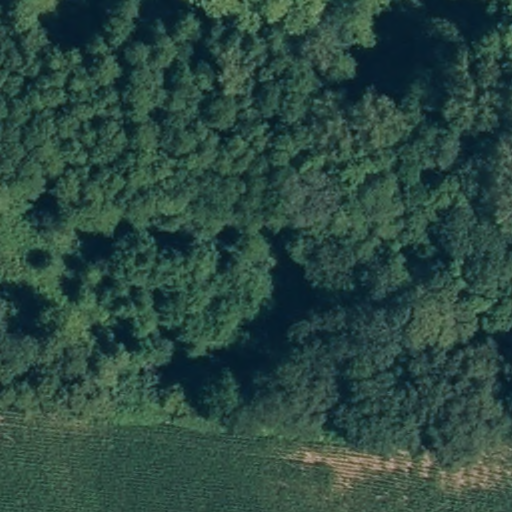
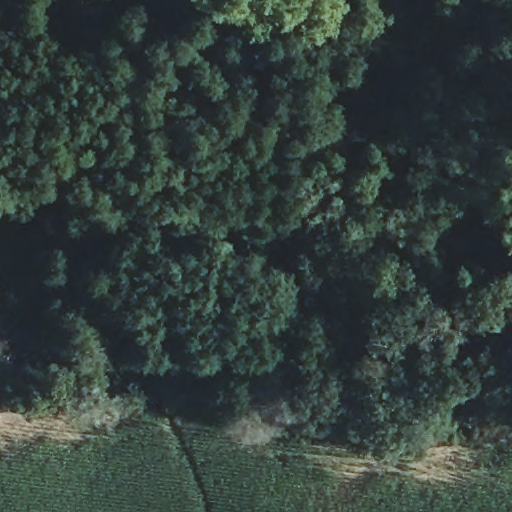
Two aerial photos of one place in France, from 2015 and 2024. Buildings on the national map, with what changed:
[]

